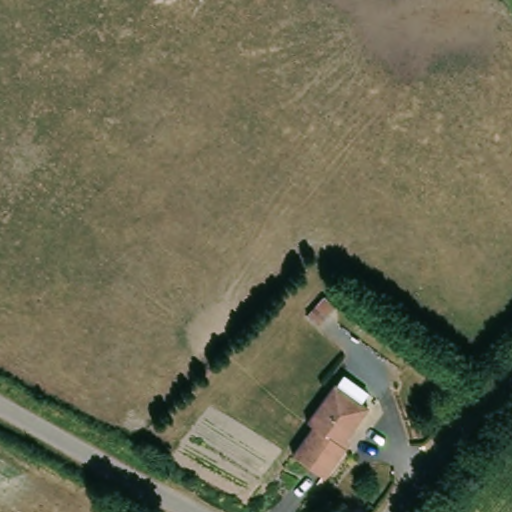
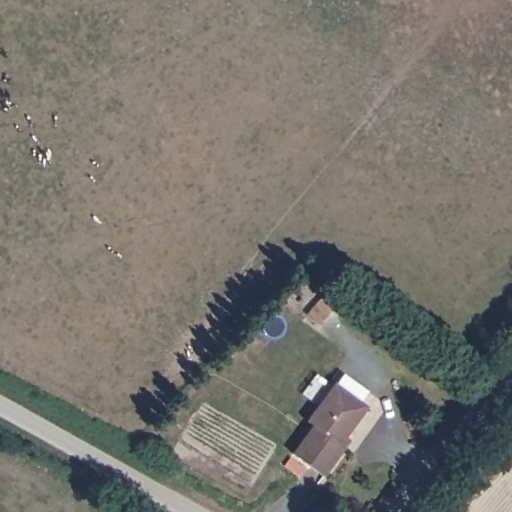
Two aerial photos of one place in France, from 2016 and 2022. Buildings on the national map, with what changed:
unchanged [(341,446),(346,449),(323,479),(292,456),(313,427),(307,423),(334,385),(336,386),(344,375),(367,394),(361,404),(367,409),(341,446)]

